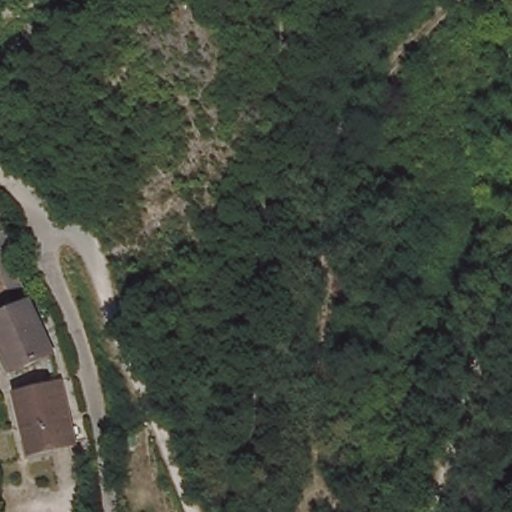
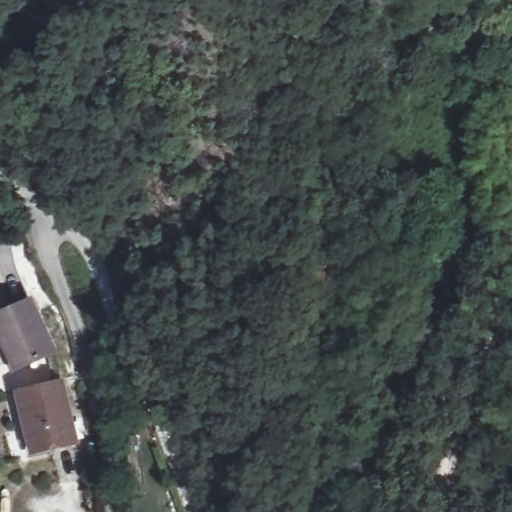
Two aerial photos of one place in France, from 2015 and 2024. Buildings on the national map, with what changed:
unchanged [(15,373),(0,343),(0,319),(32,303),(57,352),(15,373)]
unchanged [(60,377),(76,450),(33,460),(17,388),(60,377)]

